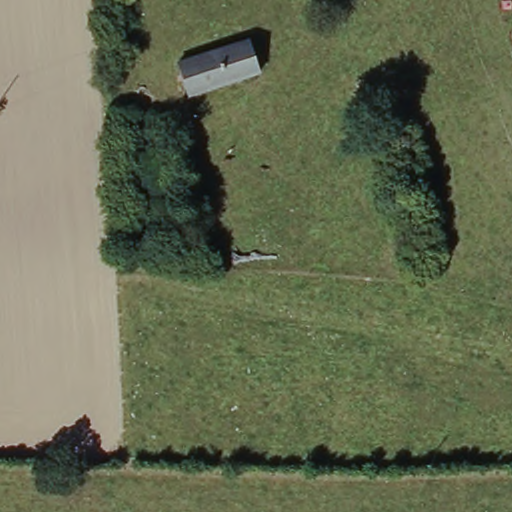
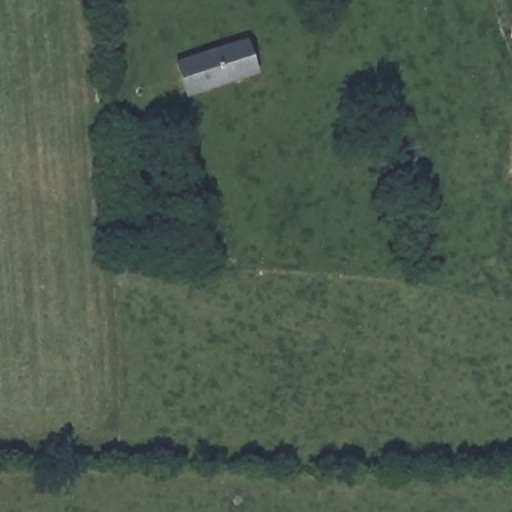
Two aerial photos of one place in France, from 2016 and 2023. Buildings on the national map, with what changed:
unchanged [(251,47),(262,80),(190,101),(182,69),(251,47)]

